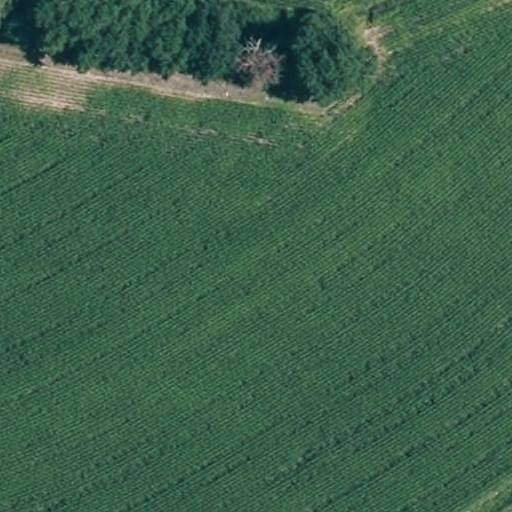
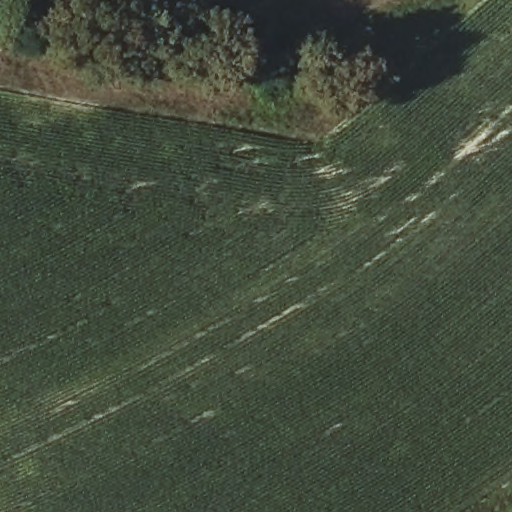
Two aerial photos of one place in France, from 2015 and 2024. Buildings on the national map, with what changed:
[]

